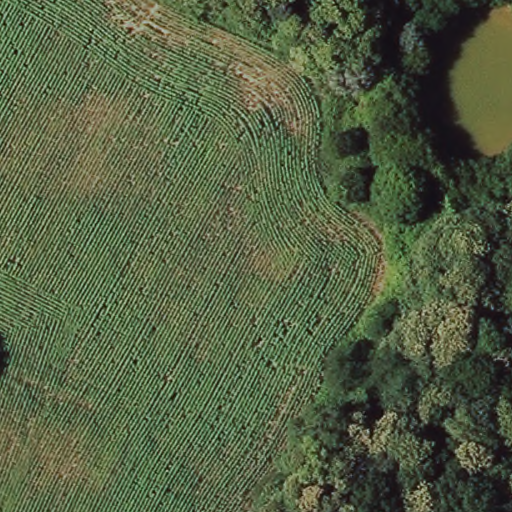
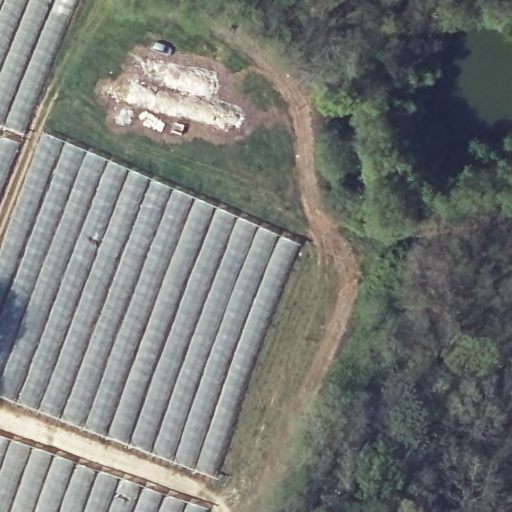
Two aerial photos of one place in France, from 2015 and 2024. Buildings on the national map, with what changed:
new [(27,140),(5,194),(0,207),(0,0),(78,0),(67,24),(27,140)]
new [(13,197),(39,133),(106,159),(300,245),(248,376),(216,481),(62,427),(0,400),(0,207),(5,194),(13,197)]
new [(16,436),(54,448),(113,469),(111,474),(146,485),(148,482),(211,504),(209,510),(209,512),(0,512),(0,435),(14,439),(16,436)]

